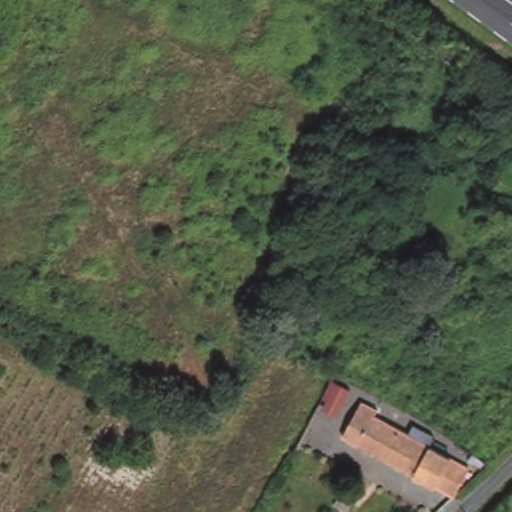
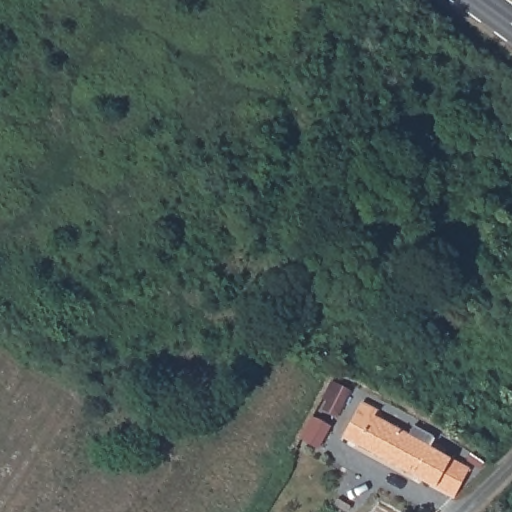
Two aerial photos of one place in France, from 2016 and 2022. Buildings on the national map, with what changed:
unchanged [(413,424),(435,437),(430,447),(469,467),(453,496),(342,436),(344,432),(330,424),(346,394),(361,402),(377,411),(374,416),(407,434),(413,424)]
unchanged [(333,483),(345,491),(346,493),(344,495),(343,496),(342,496),(341,496),(330,489),(333,483)]

